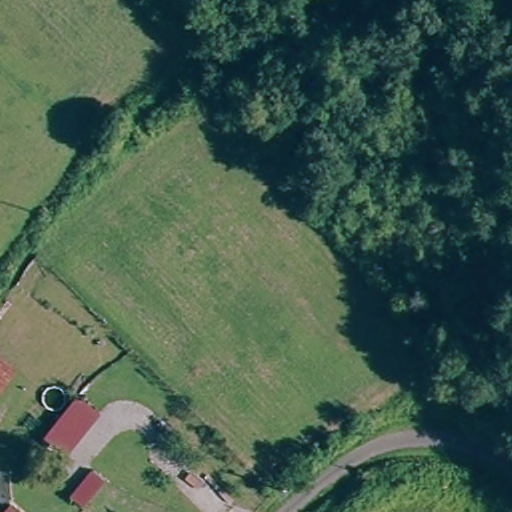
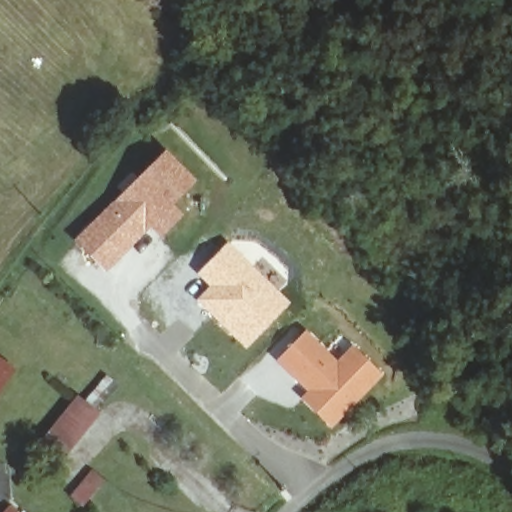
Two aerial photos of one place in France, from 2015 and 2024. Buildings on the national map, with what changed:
new [(198,182),(175,205),(185,216),(160,240),(151,231),(107,274),(74,242),(166,151),(198,182)]
new [(228,241),(290,302),(245,348),(196,299),(208,286),(195,273),(228,241)]
new [(307,328),(336,359),(353,343),(383,375),(330,429),(299,397),(305,390),(275,360),(307,328)]
unchanged [(0,393),(0,365),(13,374),(0,393)]
unchanged [(82,391),(103,413),(62,451),(41,429),(82,391)]
demolished [(0,462),(0,452),(25,426),(35,434),(4,465),(0,462)]
unchanged [(11,510),(13,512),(10,512),(11,510)]

